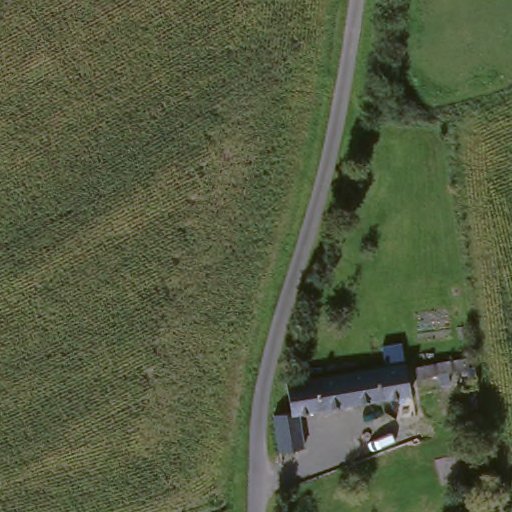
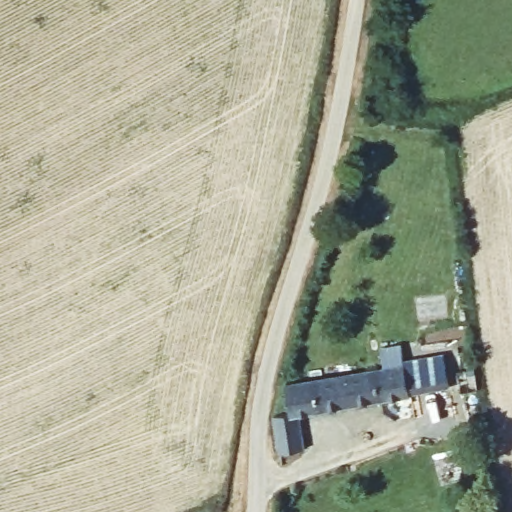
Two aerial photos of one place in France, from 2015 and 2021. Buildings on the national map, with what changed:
unchanged [(471,356),(471,368),(423,375),(422,362),(471,356)]
unchanged [(275,413),(295,412),(297,382),(405,366),(410,398),(298,418),(297,451),(274,450),(275,413)]

